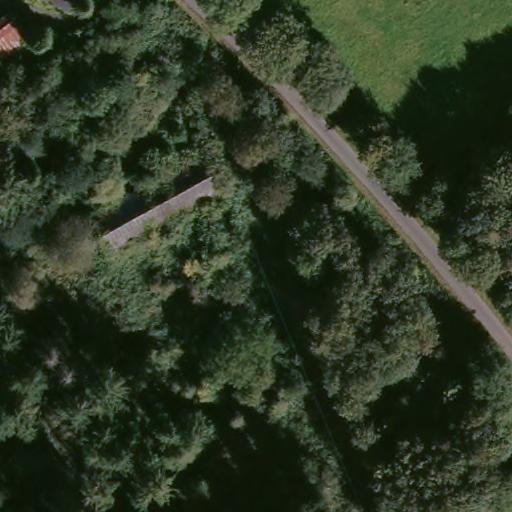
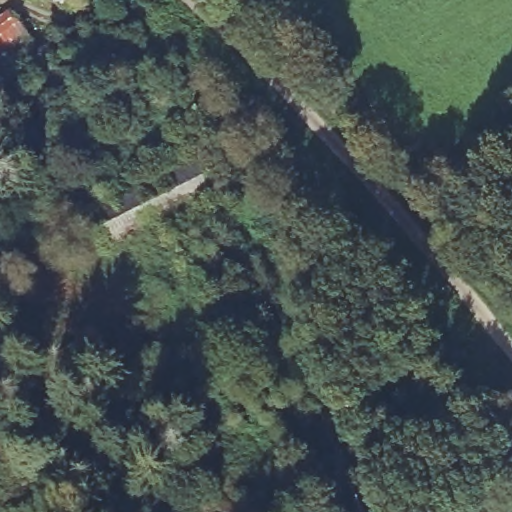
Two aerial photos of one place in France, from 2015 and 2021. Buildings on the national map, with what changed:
unchanged [(45,0),(66,0),(59,10),(45,0)]
unchanged [(6,16),(29,46),(0,67),(0,20),(6,16)]
unchanged [(203,159),(219,192),(101,247),(83,214),(203,159)]

